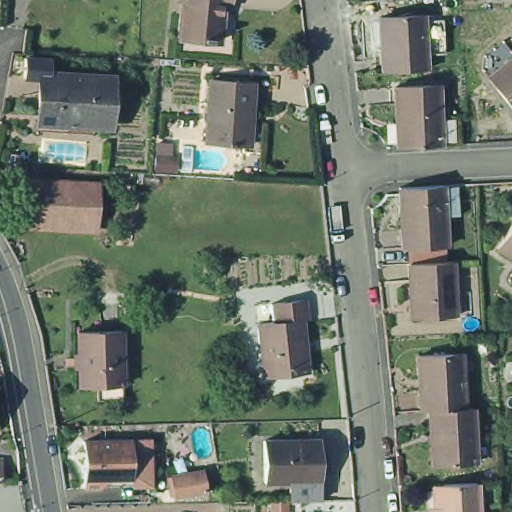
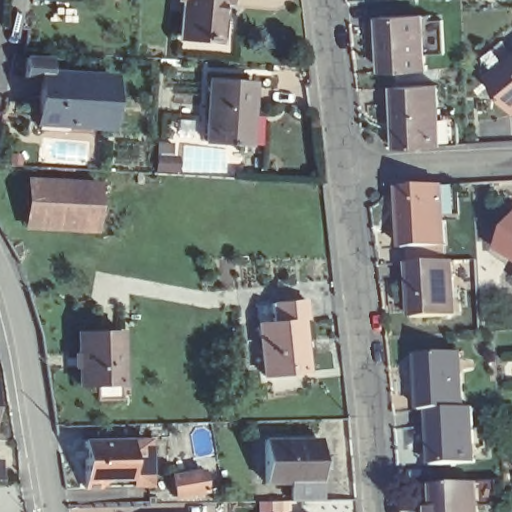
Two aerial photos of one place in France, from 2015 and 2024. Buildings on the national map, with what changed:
unchanged [(205,29),(205,31),(197,30),(197,28),(175,26),(177,0),(218,0),(215,29),(205,29)]
unchanged [(430,58),(389,60),(386,5),(427,3),(430,58)]
unchanged [(45,74),(29,73),(30,53),(54,54),(53,69),(116,73),(113,121),(42,117),(45,74)]
unchanged [(512,63),(512,95),(497,75),(512,63)]
unchanged [(210,75),(253,79),(249,139),(235,139),(235,140),(227,140),(227,138),(206,136),(210,75)]
unchanged [(401,134),(398,79),(440,76),(444,139),(401,140),(401,134)]
unchanged [(158,144),(172,145),(172,157),(157,156),(158,144)]
unchanged [(156,170),(157,157),(172,158),(171,172),(156,170)]
unchanged [(35,179),(102,182),(100,227),(32,224),(35,179)]
unchanged [(405,242),(401,180),(441,179),(442,209),(445,239),(405,242)]
unchanged [(512,230),(512,257),(500,249),(512,230)]
unchanged [(413,312),(410,257),(452,254),(455,309),(413,312)]
unchanged [(259,315),(274,314),(272,295),(305,292),(307,310),(303,311),(308,364),(265,368),(259,315)]
unchanged [(77,327),(121,325),(122,379),(97,379),(79,380),(77,327)]
unchanged [(474,402),(439,404),(432,404),(429,350),(471,348),(474,402)]
unchanged [(486,457),(444,459),(439,404),(474,402),(483,401),(486,457)]
unchanged [(295,473),(270,474),(269,431),(323,429),(324,472),(323,472),(324,491),(295,491),(295,473)]
unchanged [(155,479),(107,480),(105,482),(89,483),(89,436),(135,434),(135,439),(136,469),(155,469),(155,479)]
unchanged [(5,481),(0,481),(0,461),(6,461),(5,481)]
unchanged [(170,476),(202,470),(205,490),(174,495),(170,476)]
unchanged [(488,512),(445,512),(443,478),(486,477),(488,512)]

